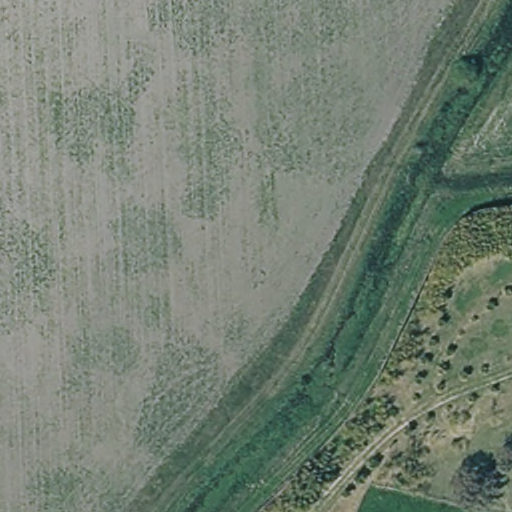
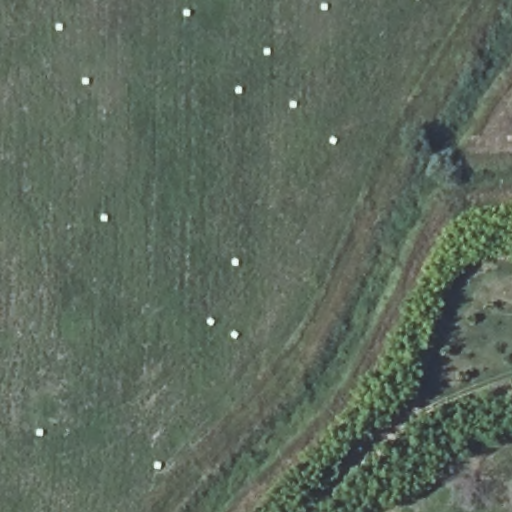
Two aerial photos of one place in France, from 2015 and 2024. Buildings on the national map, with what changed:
[]

